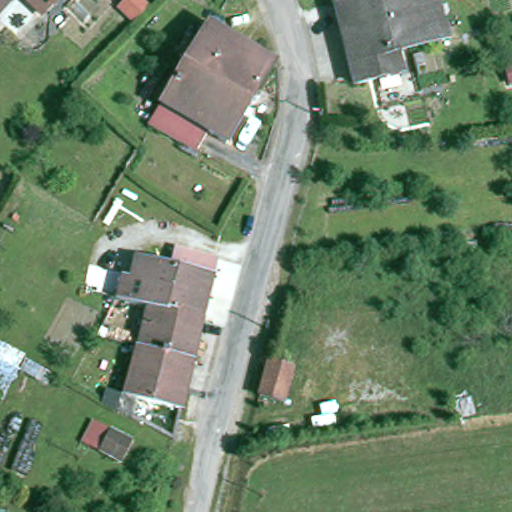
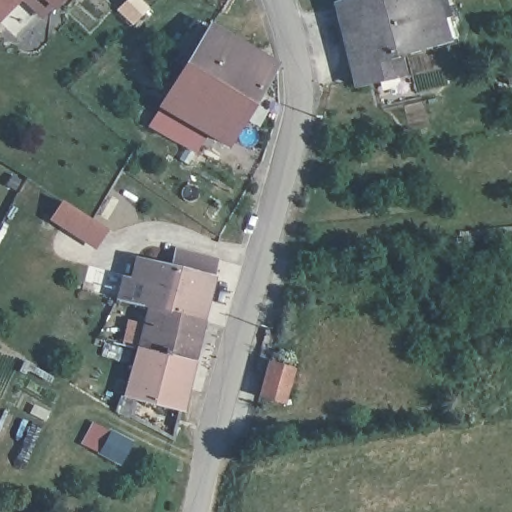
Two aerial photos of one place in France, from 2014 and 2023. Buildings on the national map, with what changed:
unchanged [(21,0),(0,22),(0,0),(21,0)]
unchanged [(42,0),(65,0),(55,11),(42,0)]
unchanged [(395,59),(401,80),(355,90),(334,8),(335,8),(333,0),(358,0),(360,0),(433,0),(447,45),(395,59)]
unchanged [(274,66),(227,144),(208,134),(195,153),(150,126),(209,26),(274,66)]
new [(108,233),(97,249),(51,220),(63,204),(108,233)]
unchanged [(132,281),(136,260),(172,269),(177,251),(215,260),(202,319),(150,308),(127,303),(120,301),(124,279),(132,281)]
unchanged [(140,349),(150,308),(202,319),(192,364),(140,349)]
unchanged [(12,410),(0,406),(0,347),(33,363),(12,410)]
unchanged [(121,396),(125,397),(138,349),(140,349),(192,364),(181,413),(138,402),(131,418),(117,411),(121,396)]
unchanged [(295,369),(285,408),(255,397),(267,361),(295,369)]
unchanged [(138,402),(181,413),(175,442),(131,418),(138,402)]
unchanged [(112,431),(132,441),(120,464),(100,453),(112,431)]

